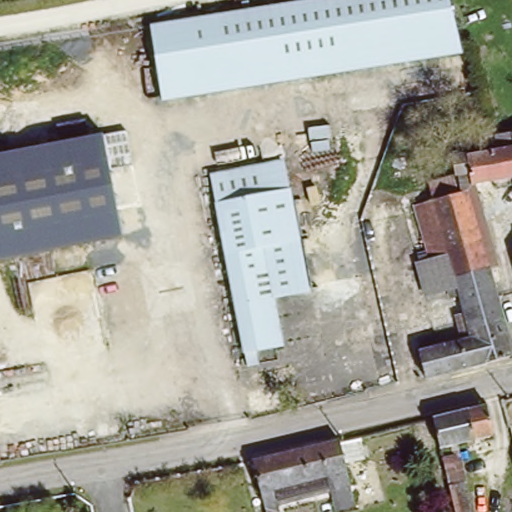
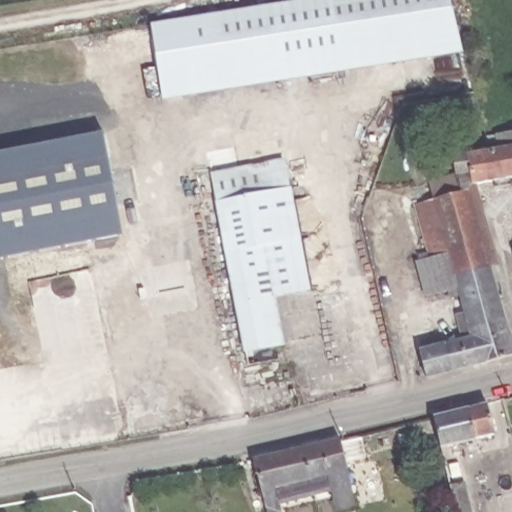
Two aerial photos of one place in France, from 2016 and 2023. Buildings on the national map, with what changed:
unchanged [(274,4),(299,0),(338,0),(340,12),(339,16),(336,17),(346,72),(339,73),(339,71),(286,80),(274,4)]
unchanged [(346,72),(336,17),(339,16),(340,12),(338,0),(454,0),(468,52),(346,72)]
unchanged [(286,80),(200,94),(184,18),(274,4),(286,80)]
unchanged [(200,94),(167,100),(153,24),(184,18),(200,94)]
unchanged [(124,237),(31,255),(11,154),(104,135),(124,237)]
unchanged [(435,185),(462,179),(459,162),(493,156),(489,142),(512,139),(512,184),(474,191),(471,197),(439,204),(435,185)]
unchanged [(31,255),(0,261),(0,156),(11,154),(31,255)]
unchanged [(294,187),(220,200),(214,171),(289,157),(294,187)]
unchanged [(220,200),(294,187),(301,216),(228,229),(220,200)]
unchanged [(471,197),(480,229),(448,236),(439,204),(471,197)]
unchanged [(464,300),(456,302),(454,292),(429,298),(421,267),(424,266),(422,260),(431,257),(419,209),(439,204),(448,236),(480,229),(485,246),(489,260),(494,277),(501,298),(512,337),(512,363),(431,381),(425,352),(475,341),(466,307),(464,300)]
unchanged [(228,229),(301,216),(313,287),(276,293),(284,337),(259,342),(261,356),(250,357),(248,343),(228,229)]
unchanged [(496,408),(504,441),(464,451),(449,454),(441,422),(496,408)]
unchanged [(478,512),(462,512),(449,454),(464,451),(478,512)]
unchanged [(338,452),(346,483),(269,502),(261,471),(338,452)]
unchanged [(278,503),(280,512),(265,512),(264,507),(278,503)]

